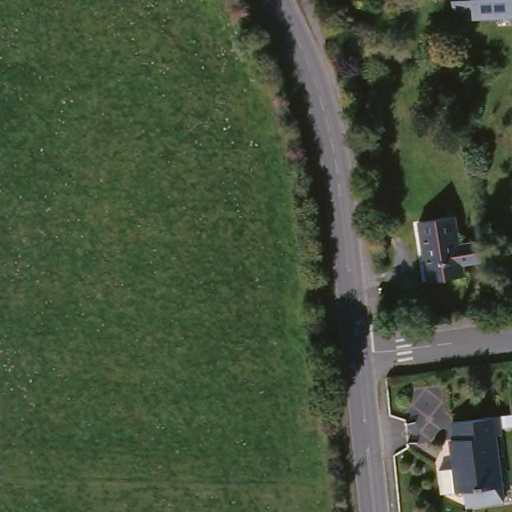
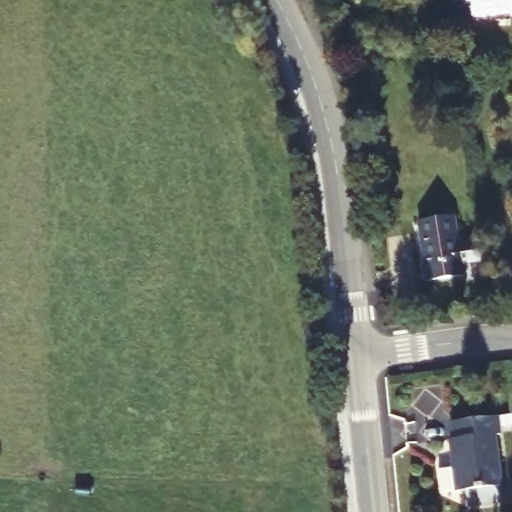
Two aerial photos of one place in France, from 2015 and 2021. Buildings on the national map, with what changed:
unchanged [(473,14),(453,15),(451,0),(512,0),(512,18),(473,20),(473,14)]
unchanged [(467,275),(431,281),(419,221),(456,215),(467,275)]
unchanged [(440,470),(455,468),(452,440),(456,440),(454,422),(500,417),(502,436),(497,437),(502,487),(504,502),(497,503),(466,507),(465,492),(458,492),(458,491),(443,493),(440,470)]

